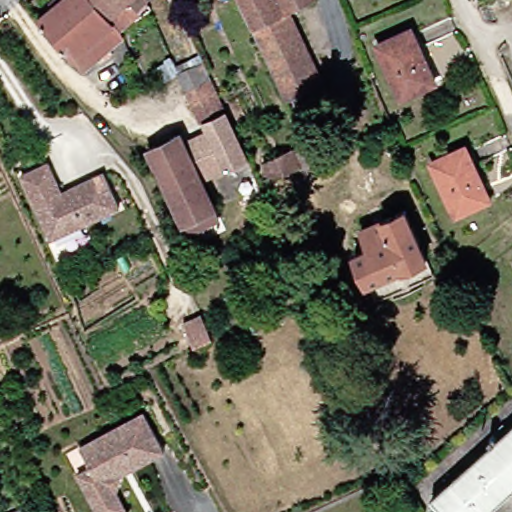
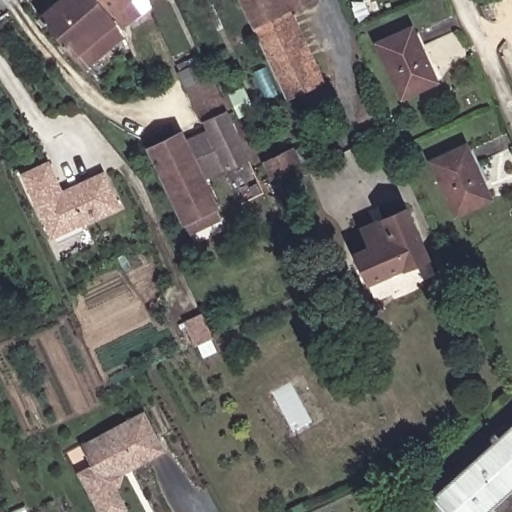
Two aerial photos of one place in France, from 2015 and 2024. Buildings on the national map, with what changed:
unchanged [(35,23),(63,0),(88,0),(108,24),(120,39),(122,42),(79,76),(35,23)]
unchanged [(88,0),(138,0),(108,24),(88,0)]
unchanged [(292,123),(280,97),(235,0),(306,0),(289,8),(290,14),(285,17),(315,81),(290,93),(300,119),(292,123)]
unchanged [(397,98),(379,59),(371,43),(402,27),(410,44),(429,83),(397,98)]
unchanged [(186,219),(150,145),(180,130),(184,139),(205,129),(202,120),(193,124),(186,109),(178,92),(172,78),(195,66),(202,80),(210,98),(217,112),(240,162),(225,170),(223,166),(202,176),(215,205),(221,216),(192,230),(186,219)]
unchanged [(429,163),(460,147),(485,198),(452,214),(429,163)]
unchanged [(260,173),(289,160),(302,154),(311,173),(297,179),(268,192),(260,173)]
unchanged [(47,235),(19,177),(45,165),(60,194),(101,174),(117,209),(82,226),(50,241),(47,235)]
unchanged [(365,249),(360,236),(402,214),(423,259),(365,287),(351,256),(365,249)]
unchanged [(205,304),(216,327),(198,336),(187,313),(205,304)]
unchanged [(87,470),(77,450),(140,416),(162,455),(119,478),(114,494),(117,501),(123,512),(93,512),(75,477),(87,470)]
unchanged [(512,422),(512,512),(440,512),(427,498),(512,422)]

